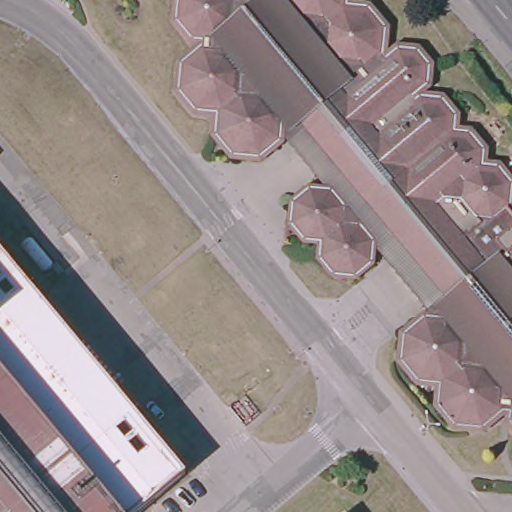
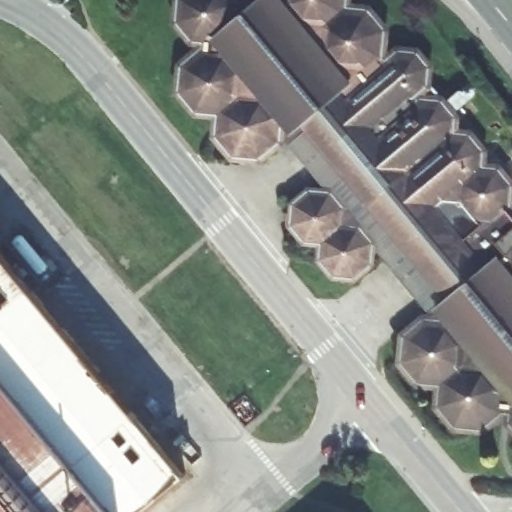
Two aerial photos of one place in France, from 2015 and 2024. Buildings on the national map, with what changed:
unchanged [(418,62),(416,77),(402,91),(407,97),(410,95),(432,98),(445,112),(443,130),(460,132),(473,147),(471,165),(488,165),(501,182),(499,202),(497,204),(512,222),(512,356),(487,377),(484,379),(445,413),(438,418),(430,408),(431,384),(407,381),(392,364),(395,338),(415,322),(424,322),(360,243),(356,245),(355,266),(340,278),(322,277),(309,262),(310,243),(293,241),(281,226),(283,209),(300,192),(317,193),(270,137),(245,156),(222,155),(205,134),(206,113),(186,110),(168,90),(171,66),(190,50),(191,39),(182,38),(168,20),(168,0),(337,0),(336,1),(361,5),(375,23),(373,48),(380,57),(390,48),(407,49),(418,62)]
unchanged [(184,475),(140,512),(0,512),(0,250),(184,475)]
unchanged [(501,407),(490,406),(490,412),(470,429),(446,426),(438,418),(445,413),(484,379),(487,377),(512,356),(512,435),(501,423),(501,407)]

